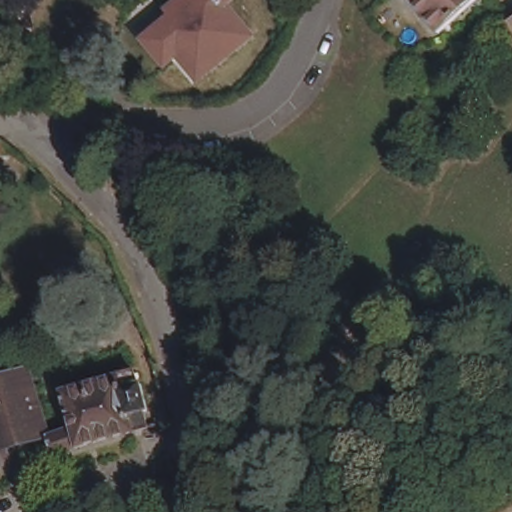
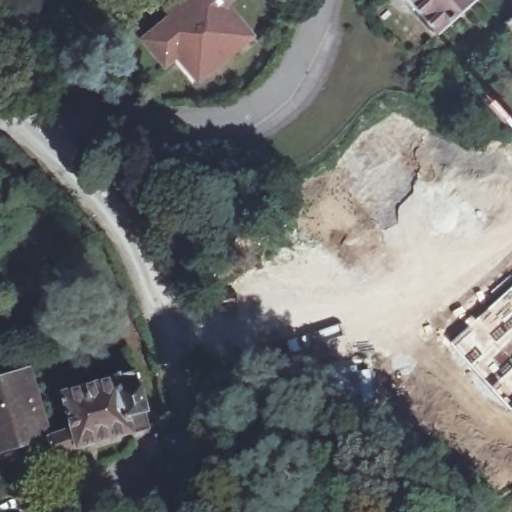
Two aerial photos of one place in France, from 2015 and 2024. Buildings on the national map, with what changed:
unchanged [(240,2),(233,9),(256,39),(199,86),(177,62),(167,72),(141,41),(170,18),(164,12),(179,0),(238,0),(240,2)]
unchanged [(437,34),(411,5),(409,8),(402,0),(475,0),(437,34)]
unchanged [(7,155),(0,148),(0,142),(3,139),(13,149),(7,155)]
new [(512,284),(512,408),(511,407),(508,409),(450,343),(478,313),(512,284)]
unchanged [(53,393),(126,372),(130,385),(133,384),(140,411),(137,413),(141,428),(45,455),(39,436),(63,429),(53,393)]
unchanged [(21,374),(38,433),(0,443),(0,380),(21,374)]

